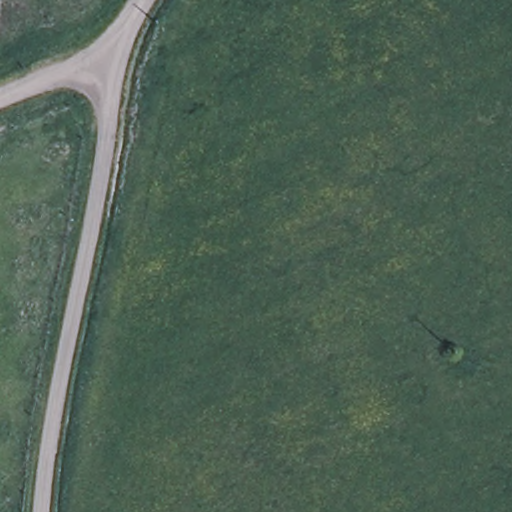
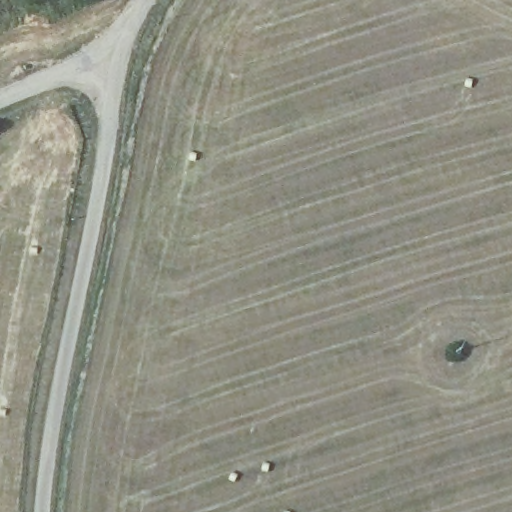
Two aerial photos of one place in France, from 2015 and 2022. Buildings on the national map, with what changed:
[]

